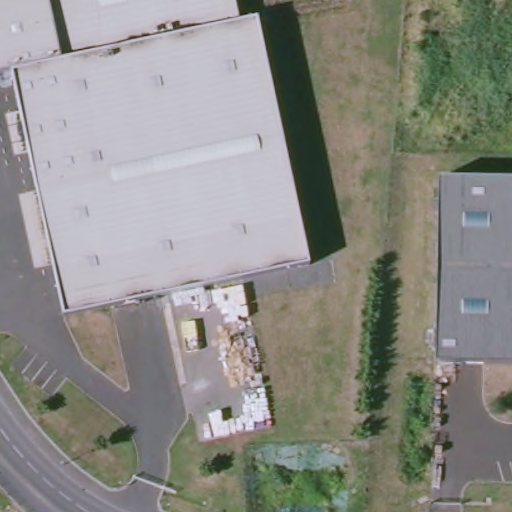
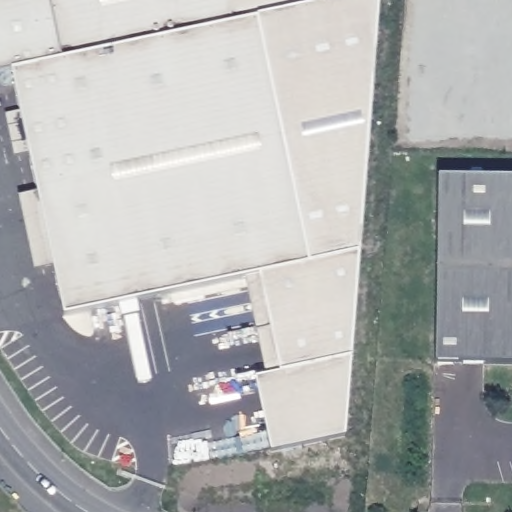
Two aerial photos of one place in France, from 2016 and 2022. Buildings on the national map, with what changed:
unchanged [(236,21),(259,16),(313,263),(66,316),(14,71),(0,74),(0,0),(231,0),(236,21)]
new [(313,263),(259,16),(236,21),(231,0),(312,0),(314,5),(338,0),(379,0),(346,438),(269,454),(254,379),(279,373),(259,274),(313,263)]
unchanged [(512,181),(512,367),(434,365),(438,180),(512,181)]

